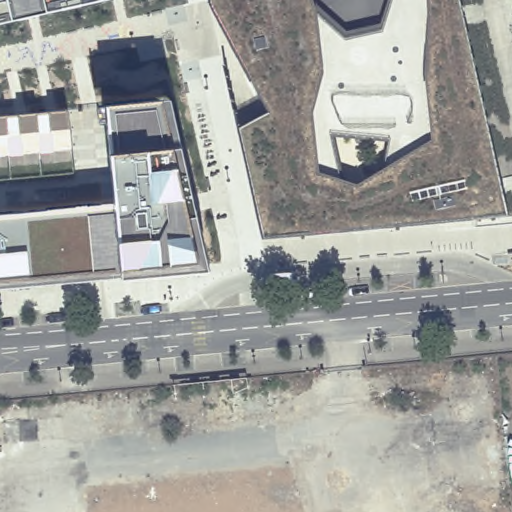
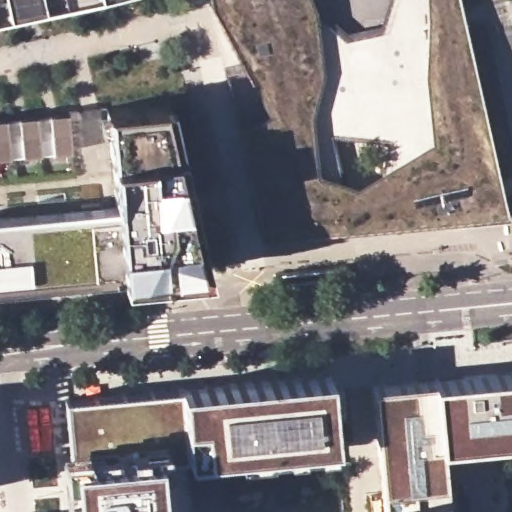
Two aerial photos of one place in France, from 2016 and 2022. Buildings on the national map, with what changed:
unchanged [(104,0),(44,12),(15,19),(0,22),(0,0),(105,0),(104,0)]
unchanged [(472,54),(502,214),(262,236),(240,127),(269,113),(212,7),(210,0),(313,0),(316,5),(347,34),(380,27),(388,0),(460,0),(472,54)]
unchanged [(122,268),(117,195),(112,177),(111,158),(106,109),(170,100),(182,149),(207,272),(120,280),(122,268)]
unchanged [(0,156),(0,117),(66,111),(70,151),(0,156)]
unchanged [(0,216),(117,206),(122,268),(120,280),(0,290),(0,216)]
new [(386,502),(371,385),(434,379),(512,372),(512,437),(442,444),(448,497),(450,512),(382,512),(381,502),(386,502)]
new [(73,444),(65,400),(181,387),(330,373),(337,442),(167,456),(172,512),(68,512),(62,445),(73,444)]

